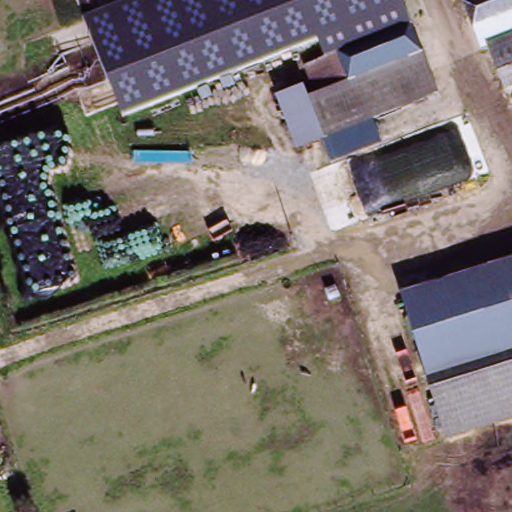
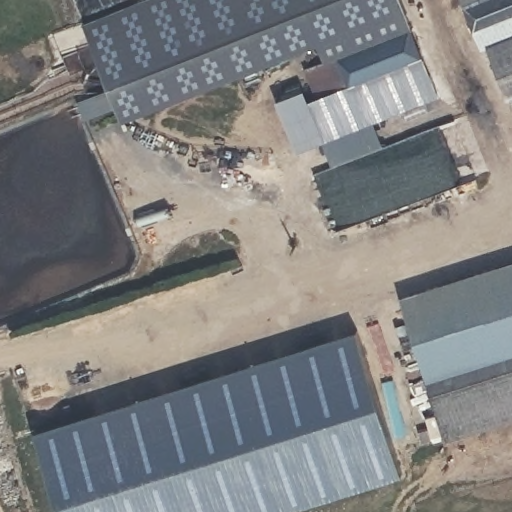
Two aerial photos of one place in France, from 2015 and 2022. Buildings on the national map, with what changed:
unchanged [(344,67),(335,41),(125,116),(90,17),(138,0),(406,0),(443,105),(300,156),(282,105),(307,96),(302,83),(344,67)]
unchanged [(510,91),(493,47),(483,47),(465,0),(512,0),(512,90),(510,91)]
unchanged [(445,443),(399,295),(512,262),(512,423),(445,443)]
new [(345,328),(378,464),(246,512),(59,512),(25,422),(345,328)]

